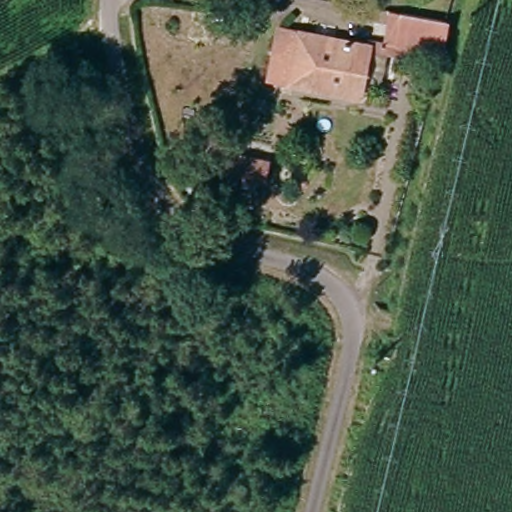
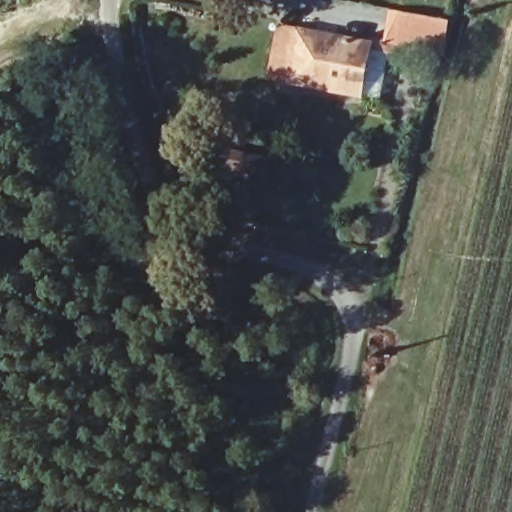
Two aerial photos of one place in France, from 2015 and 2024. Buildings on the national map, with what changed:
unchanged [(385,48),(388,10),(444,19),(439,54),(385,48)]
unchanged [(259,79),(269,22),(375,41),(365,98),(259,79)]
unchanged [(260,181),(217,172),(221,148),(264,156),(260,181)]

